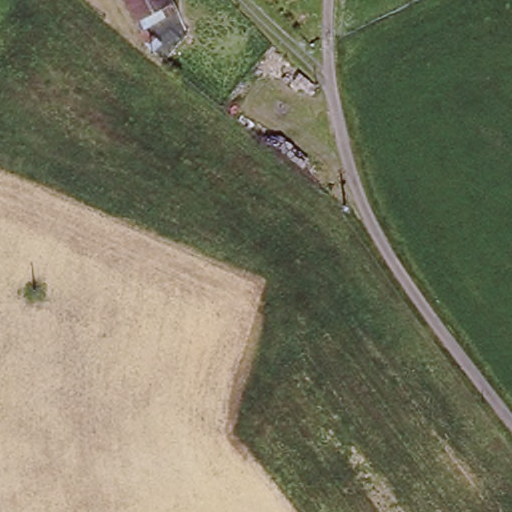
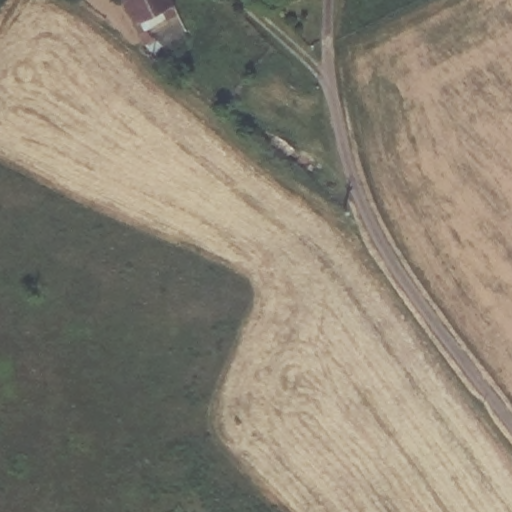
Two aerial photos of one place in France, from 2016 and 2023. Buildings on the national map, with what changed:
unchanged [(170,16),(134,31),(121,0),(163,0),(170,16)]

